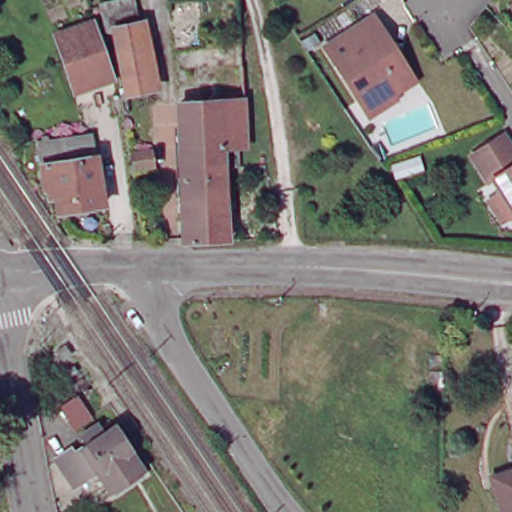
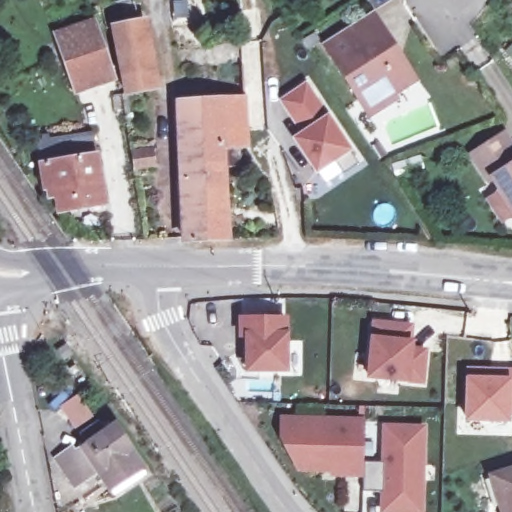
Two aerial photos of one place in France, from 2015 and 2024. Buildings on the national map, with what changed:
unchanged [(153,76),(156,90),(133,95),(120,30),(113,31),(107,7),(137,0),(139,0),(158,74),(153,76)]
unchanged [(371,112),(363,98),(329,46),(353,31),(375,17),(382,29),(413,80),(391,94),(394,97),(371,112)]
unchanged [(98,24),(118,82),(81,94),(61,37),(98,24)]
new [(298,141),(306,135),(285,102),(309,86),(361,166),(346,176),(336,162),(319,173),(298,141)]
unchanged [(254,96),(256,132),(241,132),(240,145),(234,145),(235,164),(220,165),(223,237),(178,237),(173,101),(178,101),(238,97),(254,96)]
unchanged [(490,178),(486,180),(469,155),(499,136),(512,155),(512,211),(509,207),(490,178)]
unchanged [(110,216),(62,222),(60,210),(53,211),(53,204),(49,204),(41,155),(98,146),(110,216)]
unchanged [(151,147),(153,161),(135,164),(133,150),(151,147)]
new [(288,372),(244,373),(243,341),(238,340),(238,316),(286,317),(288,332),(288,372)]
new [(409,382),(364,379),(368,337),(369,321),(413,324),(413,340),(412,347),(427,348),(423,385),(409,382)]
unchanged [(68,347),(73,355),(65,360),(60,351),(65,348),(68,347)]
new [(512,366),(512,415),(511,415),(511,422),(464,421),(465,365),(512,366)]
unchanged [(73,371),(76,368),(79,372),(75,374),(73,371)]
new [(362,492),(362,478),(328,477),(328,473),(298,473),(277,437),(279,416),(363,418),(363,463),(381,463),(381,423),(425,424),(423,512),(379,512),(379,491),(362,492)]
unchanged [(60,451),(68,444),(70,447),(83,438),(79,432),(96,420),(101,427),(111,420),(128,445),(126,446),(138,463),(114,480),(107,485),(95,468),(94,467),(86,472),(85,471),(72,480),(59,461),(54,454),(60,451)]
unchanged [(491,477),(501,473),(512,470),(512,512),(502,512),(500,505),(491,477)]

